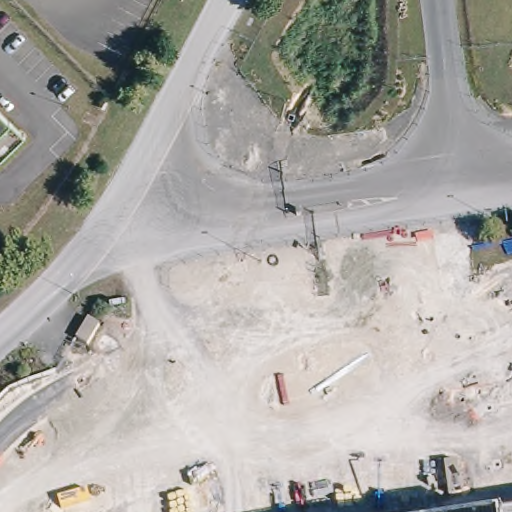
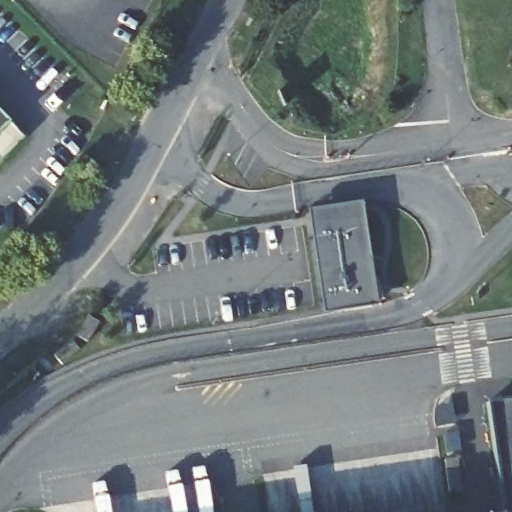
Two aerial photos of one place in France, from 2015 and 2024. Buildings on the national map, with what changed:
unchanged [(0,161),(0,115),(23,139),(0,161)]
new [(323,314),(308,212),(361,204),(376,307),(323,314)]
new [(485,406),(512,402),(512,512),(498,512),(485,406)]

